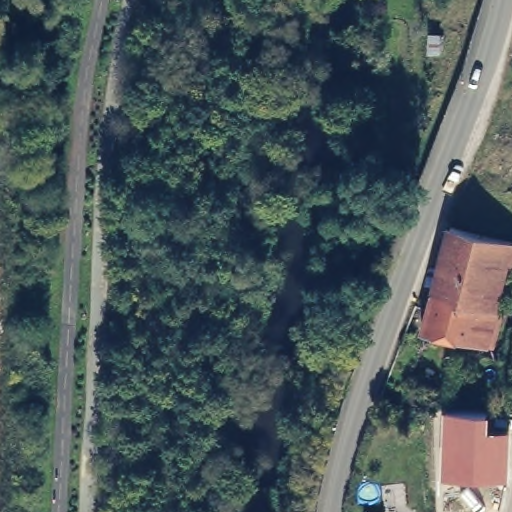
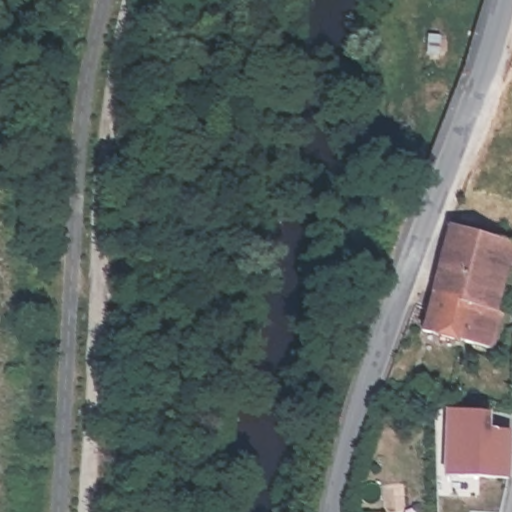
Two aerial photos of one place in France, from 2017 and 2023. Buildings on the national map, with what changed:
unchanged [(423,310),(446,228),(512,246),(512,268),(502,266),(490,313),(495,314),(485,349),(417,331),(423,310)]
unchanged [(461,486),(462,477),(445,476),(447,409),(512,415),(512,422),(507,434),(507,478),(506,488),(461,486)]

